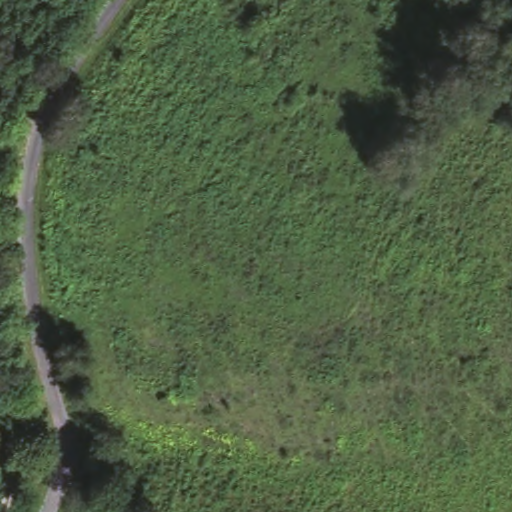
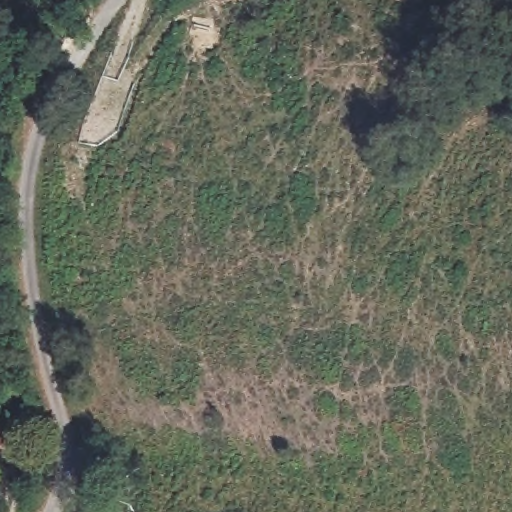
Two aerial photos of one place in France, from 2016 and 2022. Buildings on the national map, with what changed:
[]

